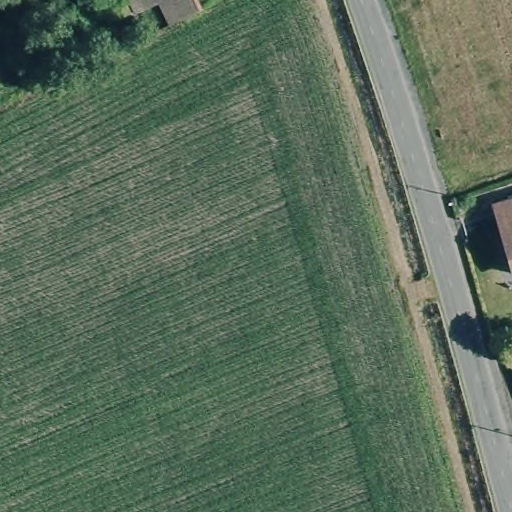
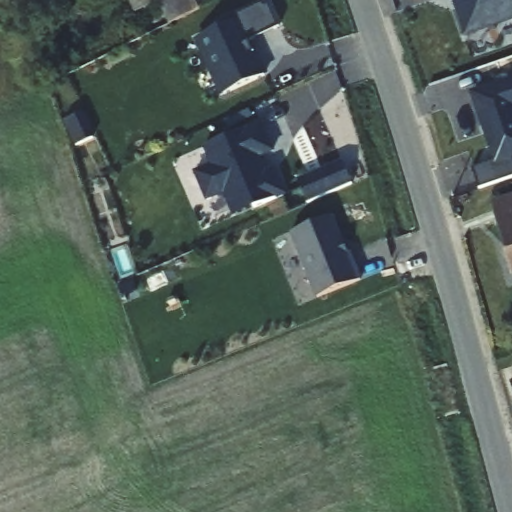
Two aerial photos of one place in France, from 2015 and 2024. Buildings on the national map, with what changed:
unchanged [(167,20),(156,0),(192,0),(196,7),(185,12),(167,20)]
new [(197,37),(219,27),(217,23),(267,0),(279,27),(249,41),(265,75),(224,94),(197,37)]
new [(512,19),(466,35),(454,0),(512,0),(512,19)]
unchanged [(512,109),(507,111),(512,124),(512,158),(490,165),(466,97),(512,82),(512,109)]
new [(272,150),(258,157),(265,171),(274,168),(285,194),(254,207),(252,204),(232,212),(224,192),(207,199),(195,172),(212,165),(204,146),(260,122),(272,150)]
unchanged [(512,257),(495,206),(512,200),(512,257)]
new [(289,232),(332,216),(347,254),(350,252),(362,280),(315,297),(289,232)]

